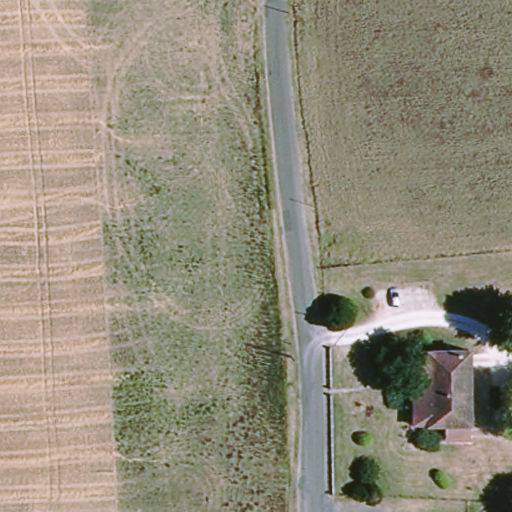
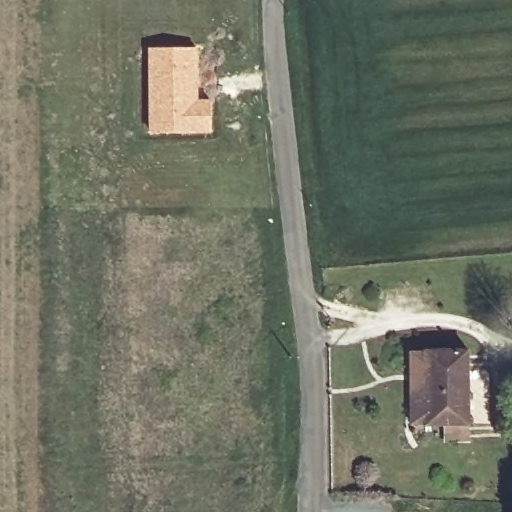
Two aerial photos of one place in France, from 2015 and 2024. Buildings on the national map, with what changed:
new [(198,45),(199,98),(211,98),(211,131),(148,132),(147,46),(198,45)]
unchanged [(482,349),(484,424),(436,425),(433,351),(482,349)]
unchanged [(436,425),(417,426),(414,352),(433,351),(436,425)]

